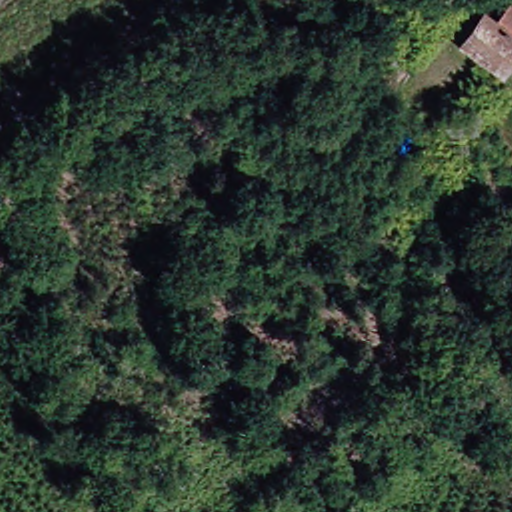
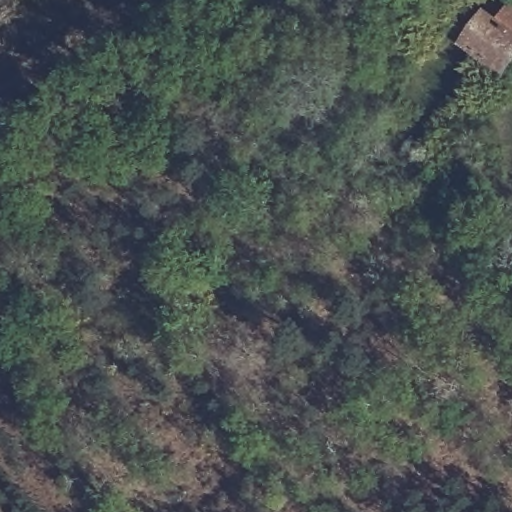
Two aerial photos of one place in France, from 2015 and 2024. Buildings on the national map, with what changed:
unchanged [(506,14),(512,8),(512,61),(503,68),(471,30),(498,7),(506,14)]

